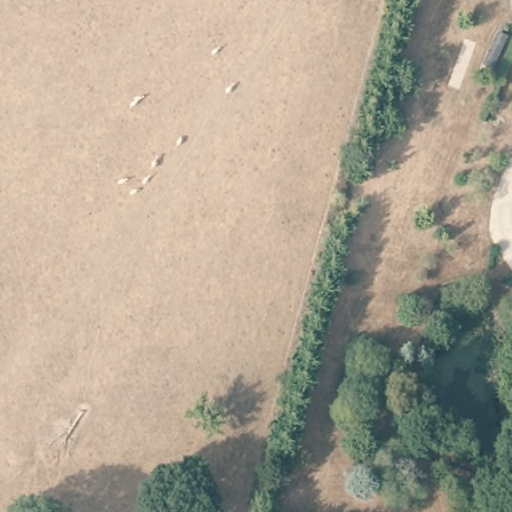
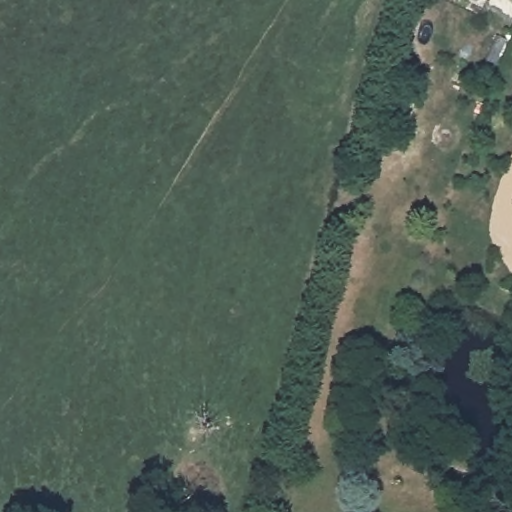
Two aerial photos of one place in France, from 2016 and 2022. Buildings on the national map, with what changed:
[]

